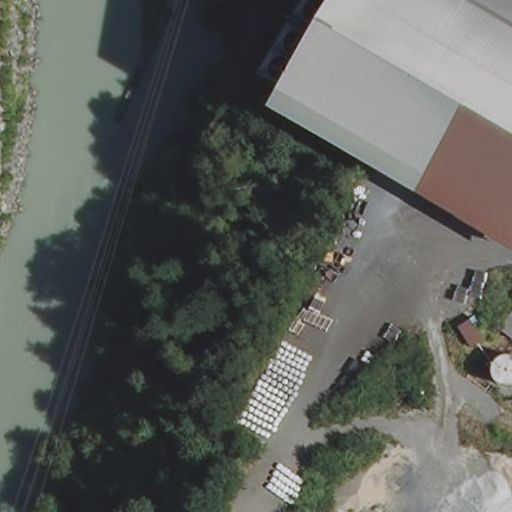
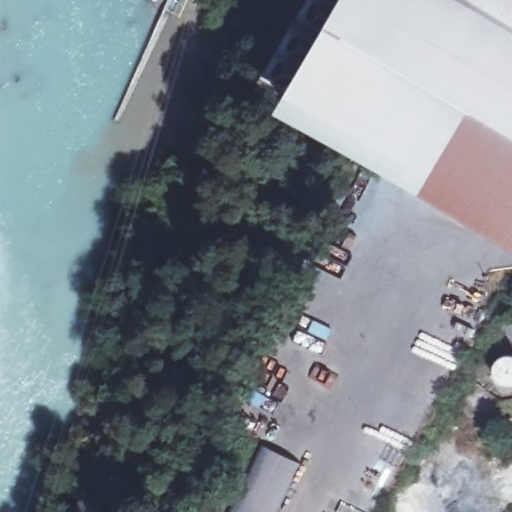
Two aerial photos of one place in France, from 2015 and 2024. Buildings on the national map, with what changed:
unchanged [(512,0),(512,226),(315,109),(335,76),(290,49),(318,0),(512,0)]
new [(262,445),(302,463),(278,512),(231,512),(262,445)]

